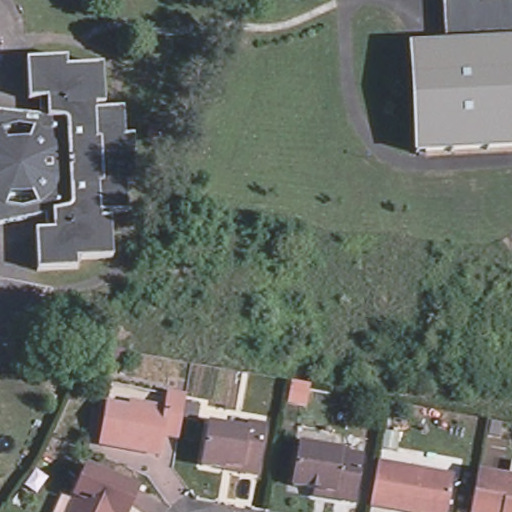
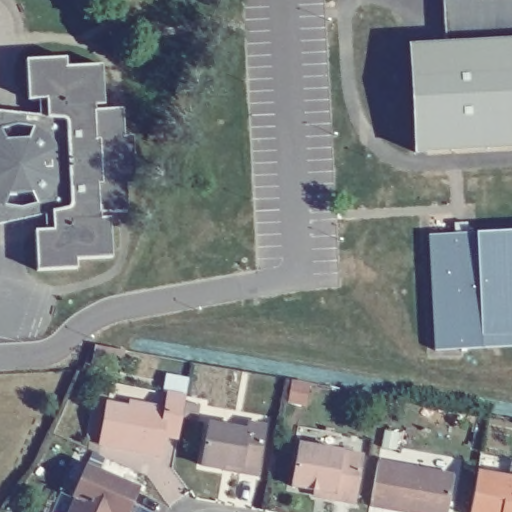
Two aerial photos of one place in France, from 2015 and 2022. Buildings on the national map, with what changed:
unchanged [(488,147),(488,150),(486,150),(486,147),(452,149),(452,152),(450,152),(450,149),(417,151),(417,154),(415,154),(415,150),(416,150),(410,50),(410,46),(412,46),(412,49),(445,47),(442,0),(512,0),(512,146),(488,147)]
unchanged [(104,106),(95,107),(95,112),(122,110),(124,138),(133,137),(135,185),(127,185),(128,213),(100,214),(101,220),(110,219),(112,259),(77,261),(77,270),(37,272),(35,232),(53,231),(52,214),(0,225),(0,111),(28,114),(47,116),(46,100),(27,101),(26,61),(65,59),(66,67),(102,66),(104,106)]
new [(155,128),(165,131),(162,140),(152,137),(155,128)]
new [(429,236),(477,232),(512,231),(512,346),(436,350),(429,236)]
unchanged [(100,445),(107,404),(128,407),(130,403),(165,410),(168,394),(185,397),(178,439),(162,436),(158,456),(132,451),(122,449),(100,445)]
unchanged [(201,466),(208,425),(247,432),(248,424),(265,427),(257,476),(240,472),(223,470),(201,466)]
unchanged [(292,487),(300,445),(362,456),(353,503),(331,500),(313,497),(315,491),(292,487)]
unchanged [(370,506),(377,463),(453,477),(447,512),(404,512),(370,506)]
unchanged [(75,498),(73,497),(87,466),(138,489),(128,512),(69,512),(75,498)]
unchanged [(477,478),(508,483),(510,470),(512,470),(512,512),(471,512),(477,478)]

